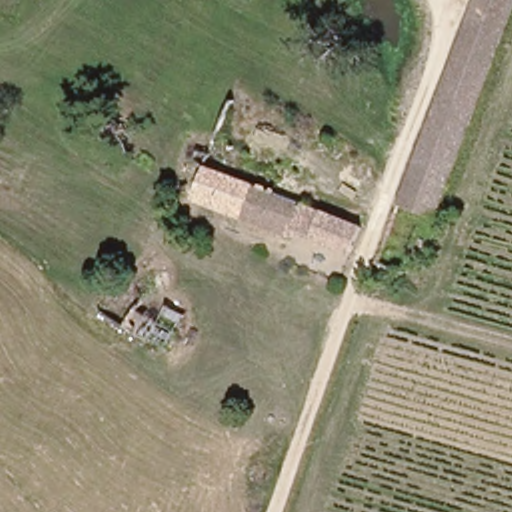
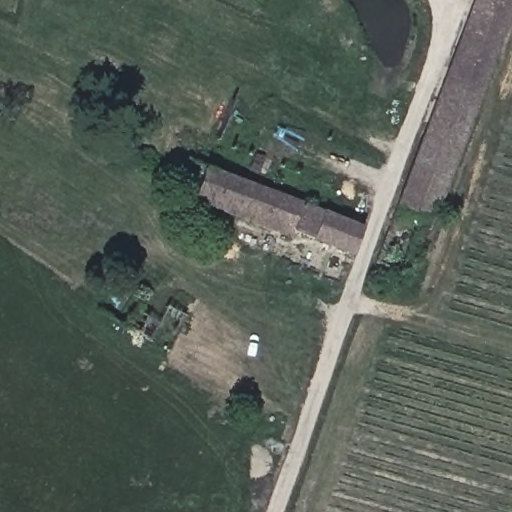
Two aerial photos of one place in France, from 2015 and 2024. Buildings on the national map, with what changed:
unchanged [(473,118),(436,214),(397,201),(473,0),(512,0),(512,10),(473,118)]
unchanged [(218,167),(221,158),(229,140),(324,179),(314,205),(218,167)]
unchanged [(306,231),(302,239),(186,192),(200,161),(204,162),(208,153),(221,158),(218,167),(314,205),(373,229),(363,255),(306,231)]

